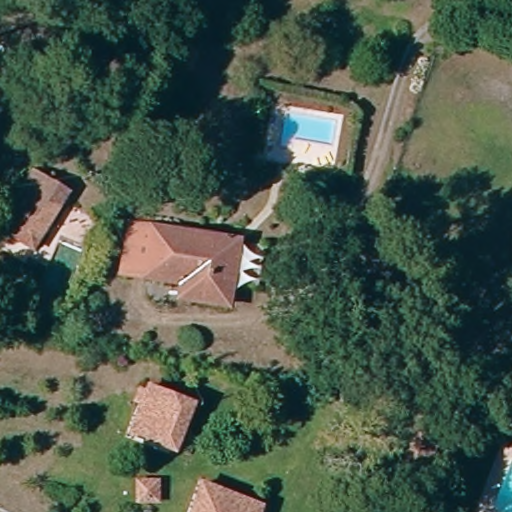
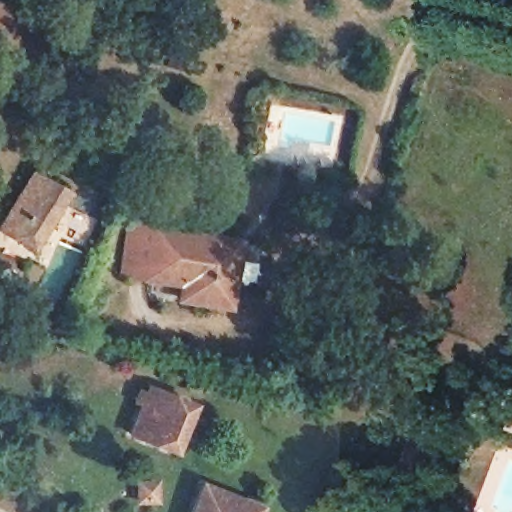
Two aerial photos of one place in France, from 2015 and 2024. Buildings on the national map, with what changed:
unchanged [(25,107),(8,120),(2,111),(0,112),(0,99),(14,90),(25,107)]
unchanged [(33,177),(68,197),(34,256),(12,244),(0,237),(0,233),(6,222),(33,177)]
unchanged [(232,250),(221,308),(175,301),(176,291),(141,282),(151,233),(232,250)]
unchanged [(141,412),(136,410),(139,400),(146,402),(148,396),(189,411),(173,455),(131,440),(141,412)]
unchanged [(512,427),(512,440),(504,436),(509,425),(512,427)]
unchanged [(412,441),(434,450),(429,463),(420,460),(416,471),(424,475),(420,484),(412,480),(398,475),(412,441)]
unchanged [(206,487),(262,507),(260,512),(195,512),(206,487)]
unchanged [(125,495),(146,493),(148,512),(126,512),(125,495)]

